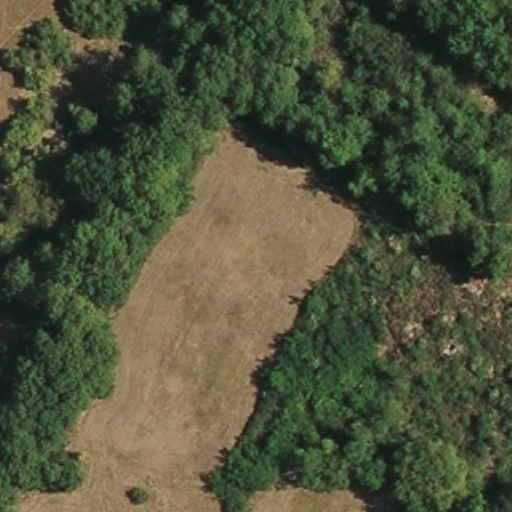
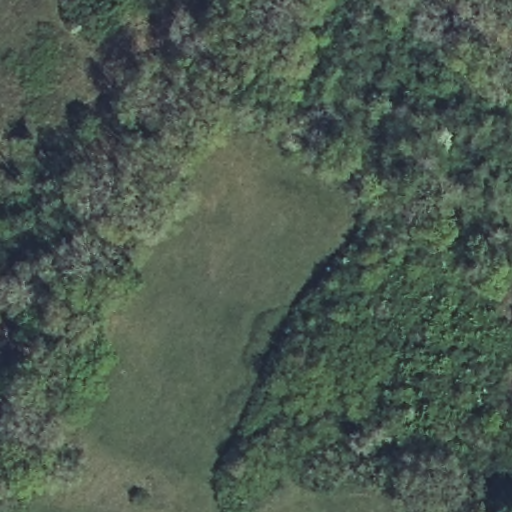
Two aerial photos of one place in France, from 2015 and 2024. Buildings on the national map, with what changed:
[]

